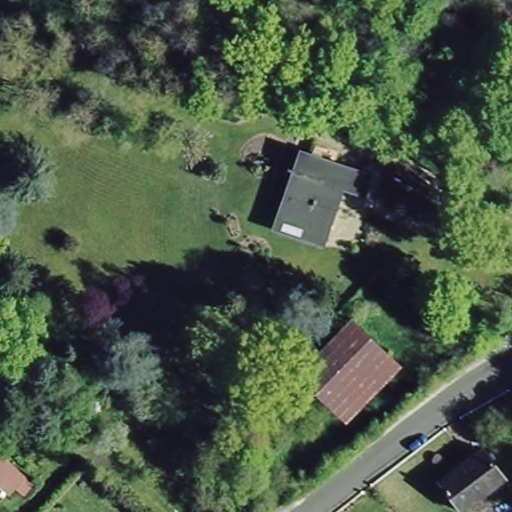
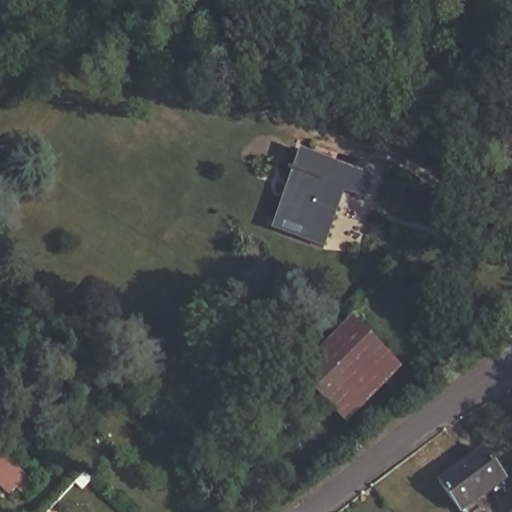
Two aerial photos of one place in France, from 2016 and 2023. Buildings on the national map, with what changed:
unchanged [(271,224),(294,157),(358,177),(351,197),(334,192),(329,207),(316,247),(291,240),(269,232),(271,224)]
unchanged [(348,331),(384,363),(333,417),(296,383),(348,331)]
unchanged [(506,486),(469,512),(457,512),(439,487),(484,456),(506,486)]
unchanged [(13,497),(0,486),(0,458),(28,481),(13,497)]

